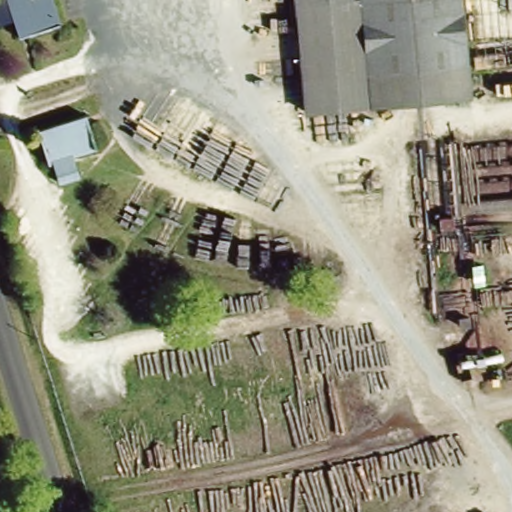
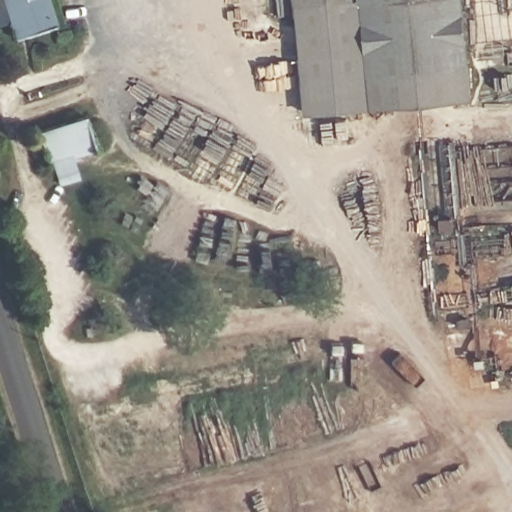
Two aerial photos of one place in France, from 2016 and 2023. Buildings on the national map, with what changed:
unchanged [(28,28),(26,20),(0,26),(0,0),(55,0),(62,21),(28,28)]
unchanged [(460,0),(469,101),(305,113),(295,0),(460,0)]
unchanged [(87,115),(92,139),(48,150),(43,126),(87,115)]

